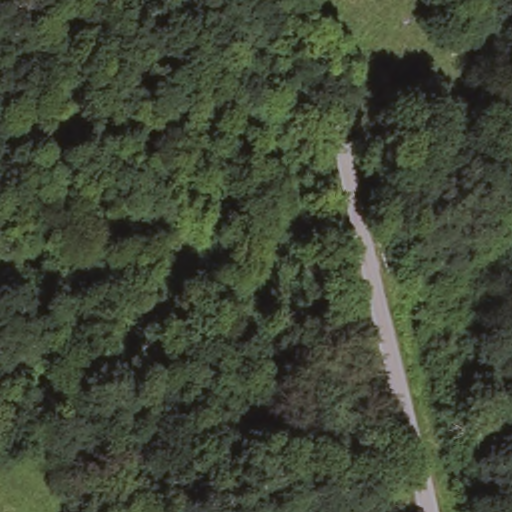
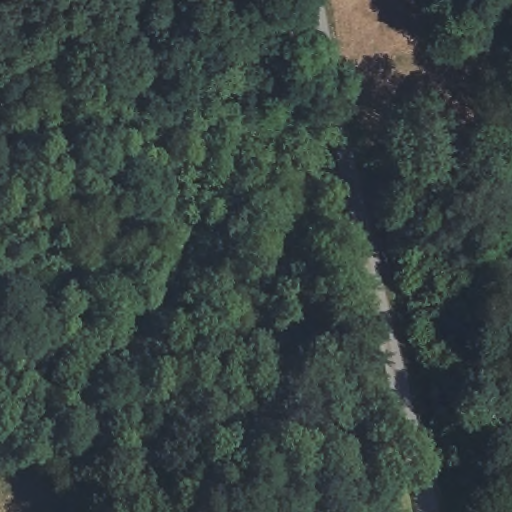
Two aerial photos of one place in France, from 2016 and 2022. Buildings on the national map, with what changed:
[]

